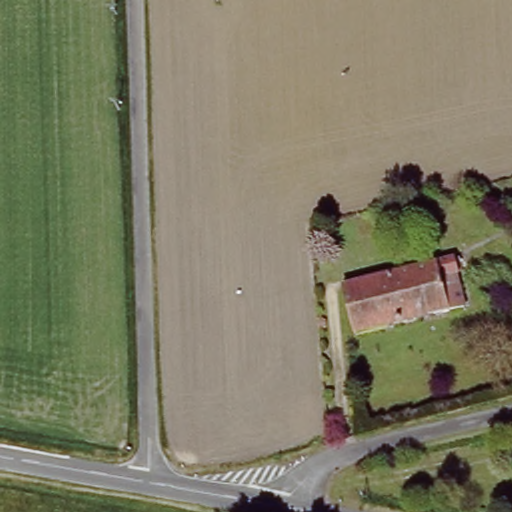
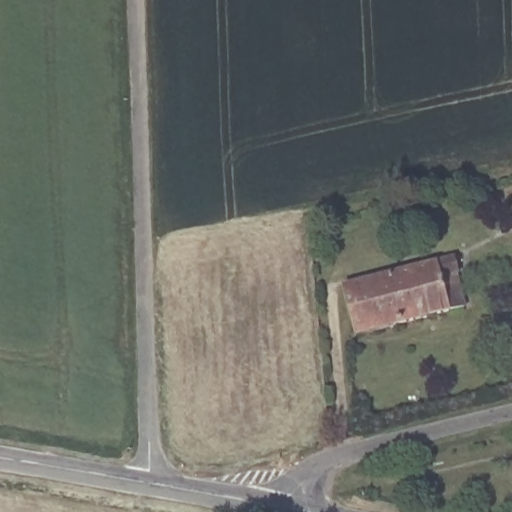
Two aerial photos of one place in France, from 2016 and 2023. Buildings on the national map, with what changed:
unchanged [(453,263),(463,309),(352,337),(342,287),(453,263)]

